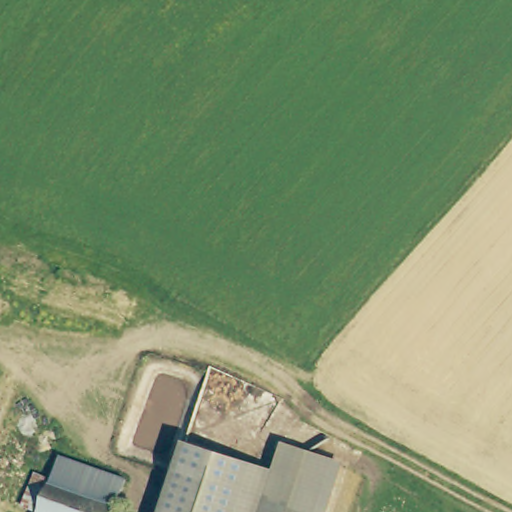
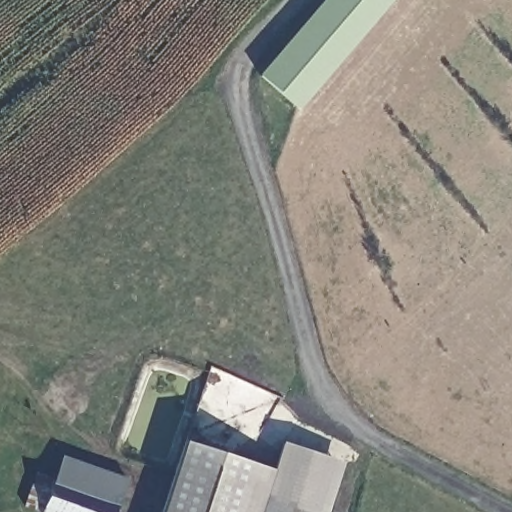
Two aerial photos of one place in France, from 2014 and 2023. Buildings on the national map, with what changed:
new [(297,108),(256,75),(320,0),(391,0),(297,108)]
unchanged [(251,460),(234,512),(158,512),(182,438),(251,460)]
unchanged [(261,512),(286,438),(336,455),(317,512),(261,512)]
unchanged [(125,482),(115,507),(66,487),(76,462),(125,482)]
unchanged [(51,512),(24,501),(35,475),(66,487),(115,507),(113,512),(51,512)]

